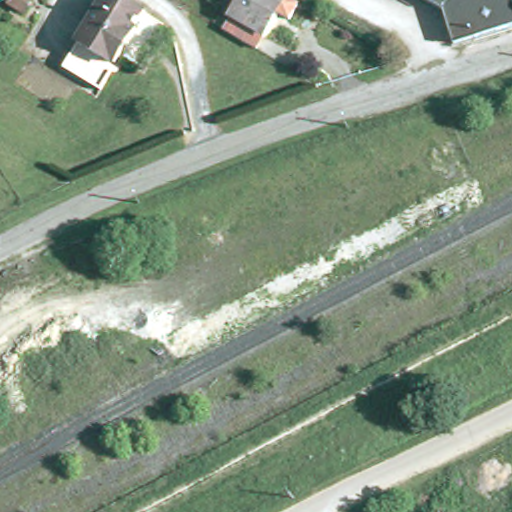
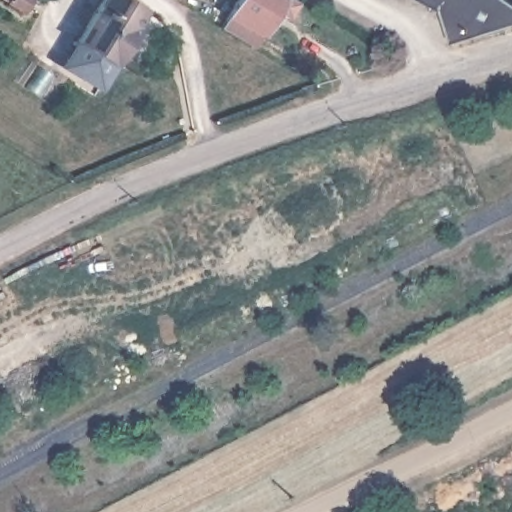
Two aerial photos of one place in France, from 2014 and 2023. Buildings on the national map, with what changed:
unchanged [(31,0),(25,10),(9,0),(31,0)]
unchanged [(121,0),(143,13),(125,42),(129,45),(117,64),(113,61),(111,64),(79,44),(105,0),(121,0)]
unchanged [(262,49),(228,30),(246,0),(293,0),(304,6),(295,21),(282,14),(262,49)]
unchanged [(421,0),(512,0),(512,30),(459,48),(453,33),(447,14),(421,0)]
unchanged [(111,64),(113,61),(117,64),(102,90),(64,67),(79,44),(111,64)]

